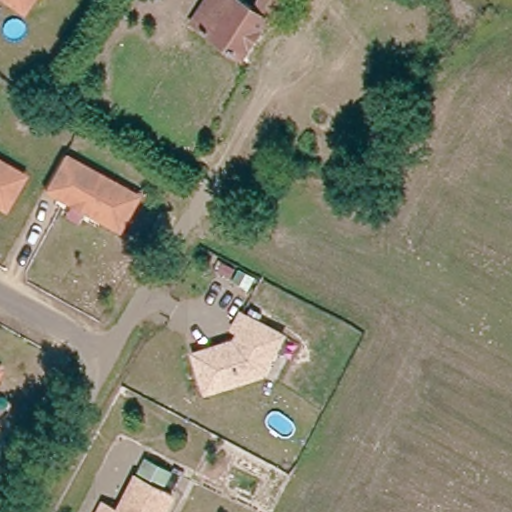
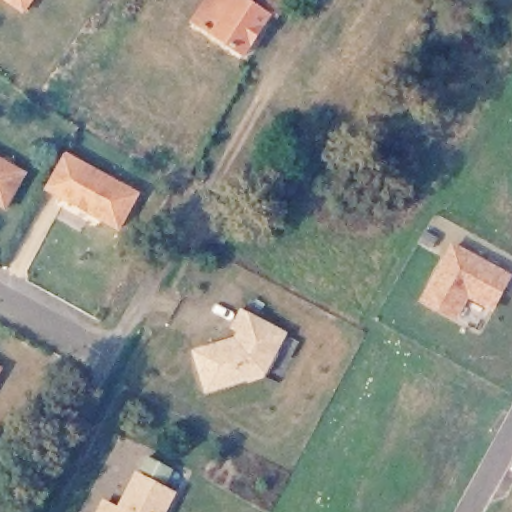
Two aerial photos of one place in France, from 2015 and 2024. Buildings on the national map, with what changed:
unchanged [(4,0),(34,0),(24,13),(4,0)]
unchanged [(246,56),(185,21),(198,0),(255,0),(273,11),(246,56)]
unchanged [(64,149),(138,196),(117,228),(86,209),(87,207),(72,198),(71,199),(46,184),(64,149)]
unchanged [(3,207),(0,205),(0,161),(22,172),(3,207)]
new [(419,302),(452,243),(510,276),(491,312),(468,299),(456,323),(419,302)]
unchanged [(241,318),(282,340),(261,379),(205,396),(194,358),(235,345),(240,336),(234,333),(241,318)]
unchanged [(161,502),(138,489),(145,475),(168,488),(161,502)]
unchanged [(135,495),(169,512),(127,512),(135,495)]

